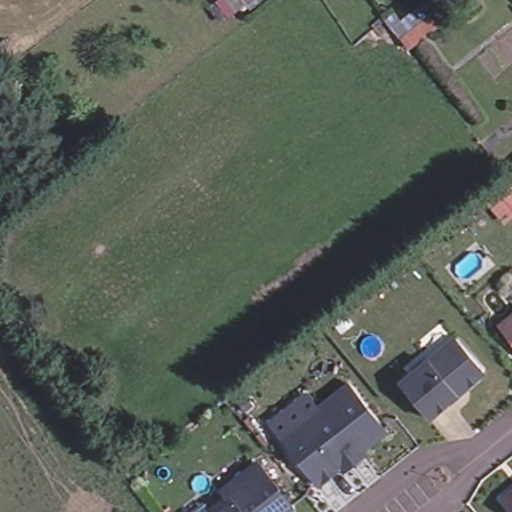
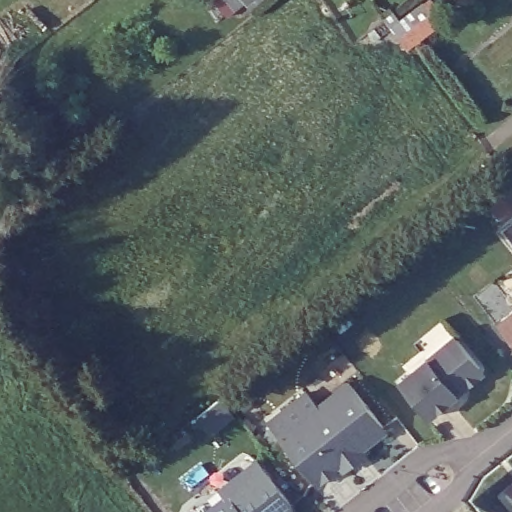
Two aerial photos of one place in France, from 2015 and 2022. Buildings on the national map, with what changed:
unchanged [(231,0),(256,0),(249,6),(242,12),(231,0)]
unchanged [(433,14),(405,36),(396,26),(389,17),(397,11),(405,19),(425,4),(433,14)]
unchanged [(500,325),(512,314),(512,340),(500,325)]
unchanged [(432,415),(401,380),(456,332),(483,363),(482,371),(469,382),(460,391),(432,415)]
unchanged [(347,465),(344,461),(321,480),(281,432),(350,376),(389,423),(364,444),(367,447),(347,465)]
unchanged [(230,498),(225,491),(259,462),(295,506),(296,512),(217,512),(215,510),(230,498)]
unchanged [(512,485),(512,503),(503,493),(512,485)]

